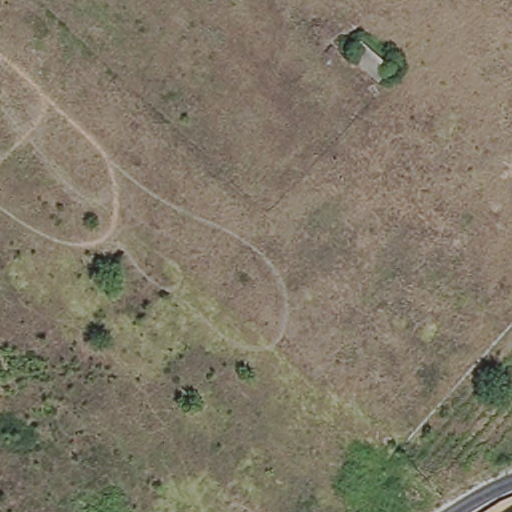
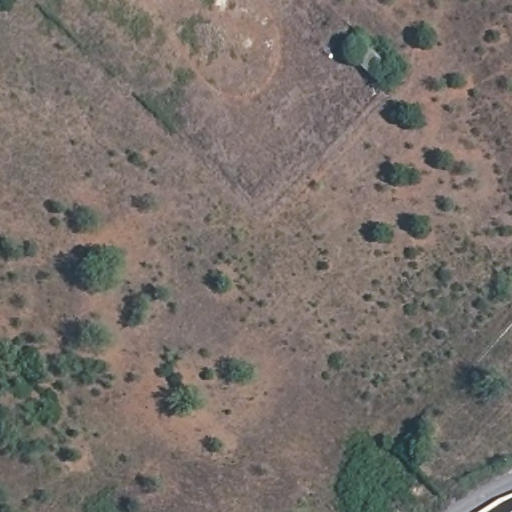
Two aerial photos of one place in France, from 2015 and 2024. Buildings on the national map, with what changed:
unchanged [(352,56),(364,42),(391,66),(380,80),(352,56)]

